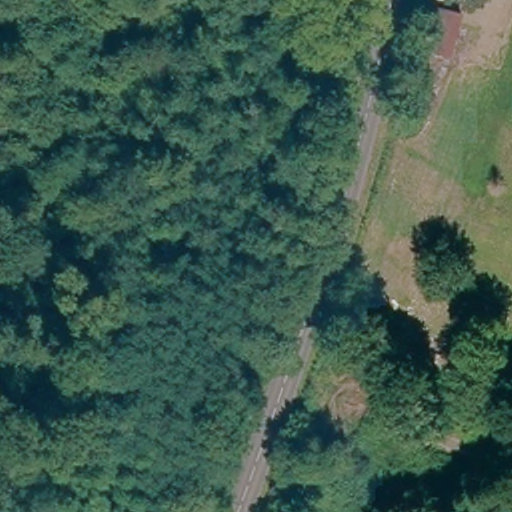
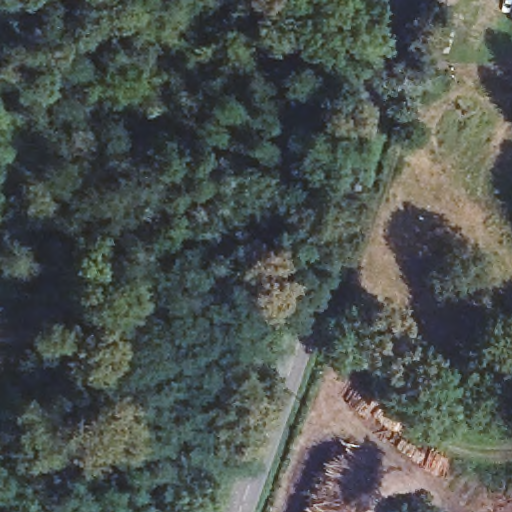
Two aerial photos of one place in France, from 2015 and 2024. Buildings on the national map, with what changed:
unchanged [(453,60),(423,53),(431,4),(463,11),(453,60)]

